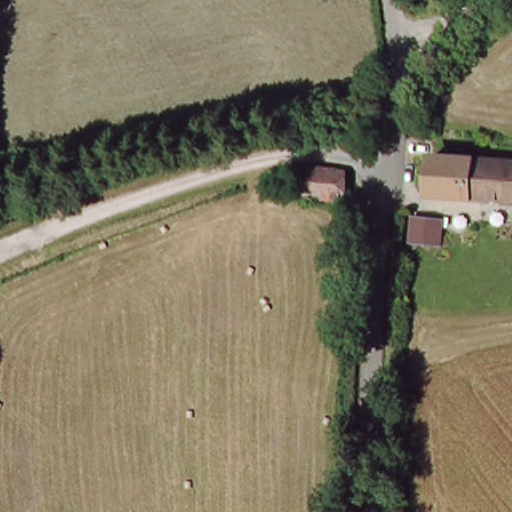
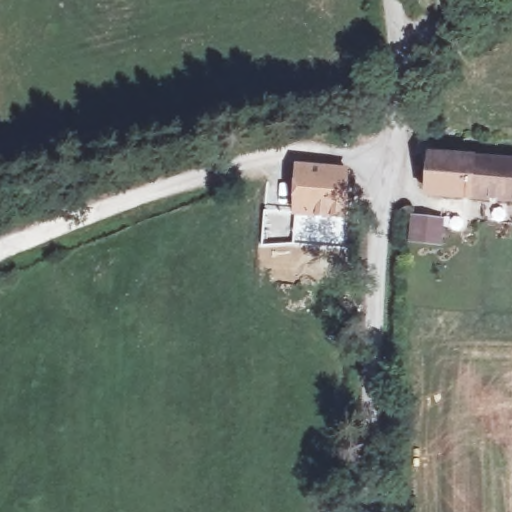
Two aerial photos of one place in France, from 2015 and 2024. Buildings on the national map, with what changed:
unchanged [(512,153),(512,196),(471,195),(428,193),(428,151),(433,151),(512,153)]
unchanged [(346,200),(297,197),(299,168),(346,171),(346,200)]
unchanged [(436,215),(436,240),(404,239),(404,214),(436,215)]

